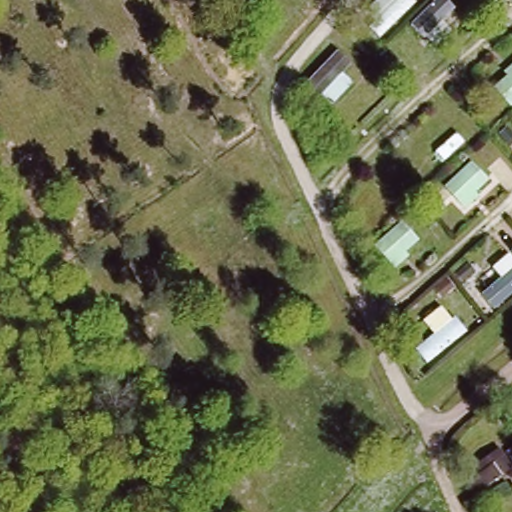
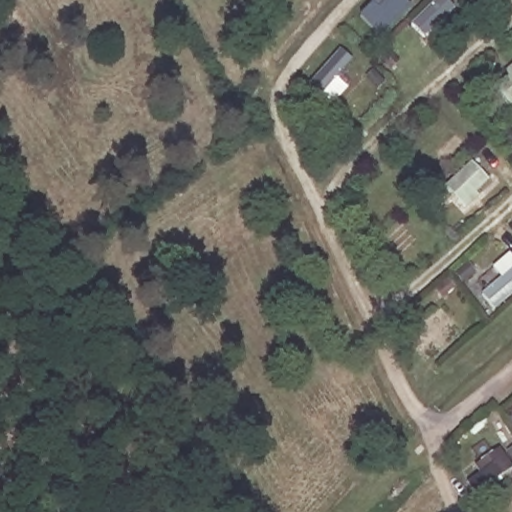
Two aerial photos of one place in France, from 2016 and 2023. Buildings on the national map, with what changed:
unchanged [(414,3),(380,38),(369,27),(376,20),(367,10),(378,0),(411,0),(414,3)]
unchanged [(454,8),(441,21),(449,30),(434,45),(411,24),(434,0),(445,0),(454,8)]
unchanged [(350,64),(341,74),(351,84),(332,105),(321,95),(318,97),(304,85),(336,52),(350,64)]
unchanged [(511,106),(493,87),(506,76),(503,72),(512,65),(512,105),(511,106)]
unchanged [(488,180),(475,192),(478,195),(464,207),(445,186),(471,163),(488,180)]
unchanged [(418,240),(404,251),(409,256),(394,268),(374,245),(402,222),(418,240)]
unchanged [(493,307),(482,293),(500,277),(492,268),(509,254),(512,257),(512,291),(493,307)]
unchanged [(428,363),(416,348),(434,335),(424,321),(442,308),(452,321),(456,318),(466,331),(428,363)]
unchanged [(508,469),(474,492),(465,481),(474,473),(474,466),(496,452),(508,469)]

